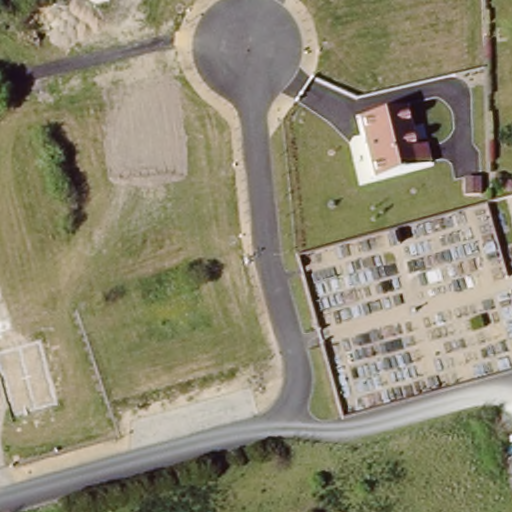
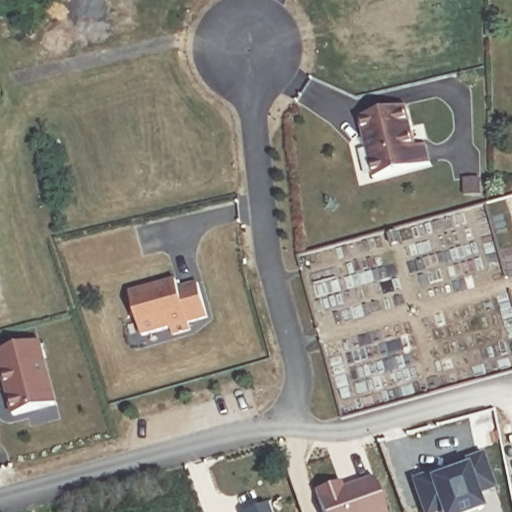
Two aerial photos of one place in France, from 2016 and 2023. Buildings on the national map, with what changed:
unchanged [(413,146),(428,142),(433,166),(374,179),(360,116),(406,106),(413,146)]
new [(177,280),(180,288),(199,283),(208,316),(188,322),(190,329),(171,334),(170,327),(143,335),(131,293),(177,280)]
new [(57,404),(15,415),(3,373),(1,374),(0,370),(0,352),(40,341),(57,404)]
new [(445,472),(468,464),(466,459),(483,453),(495,487),(478,494),(483,508),(472,512),(442,512),(442,511),(441,512),(425,512),(413,479),(429,473),(443,468),(445,472)]
new [(270,512),(243,512),(267,503),(270,512)]

